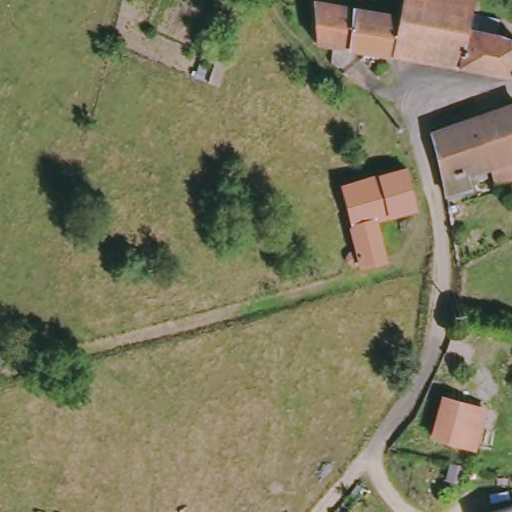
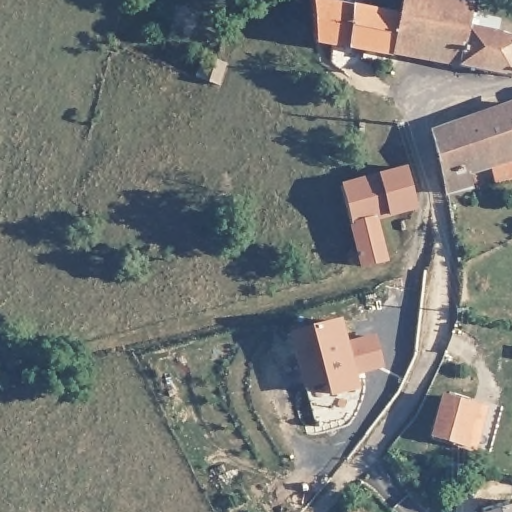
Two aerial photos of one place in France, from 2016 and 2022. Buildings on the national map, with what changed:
unchanged [(468,24),(505,32),(512,37),(512,79),(394,59),(401,17),(404,0),(471,0),(468,24)]
unchanged [(401,17),(394,59),(380,57),(321,45),(316,1),(369,12),(401,17)]
unchanged [(448,207),(444,167),(433,132),(512,106),(512,138),(507,141),(512,152),(512,159),(489,169),(495,191),(448,207)]
unchanged [(411,169),(419,205),(381,215),(389,256),(366,263),(356,259),(354,247),(359,246),(351,200),(347,184),(411,169)]
new [(289,333),(341,319),(347,341),(375,335),(383,367),(355,375),(359,389),(329,396),(326,381),(305,389),(289,333)]
unchanged [(485,446),(470,441),(439,434),(449,394),(478,401),(492,405),(485,446)]
unchanged [(497,512),(512,507),(512,512),(497,512)]

